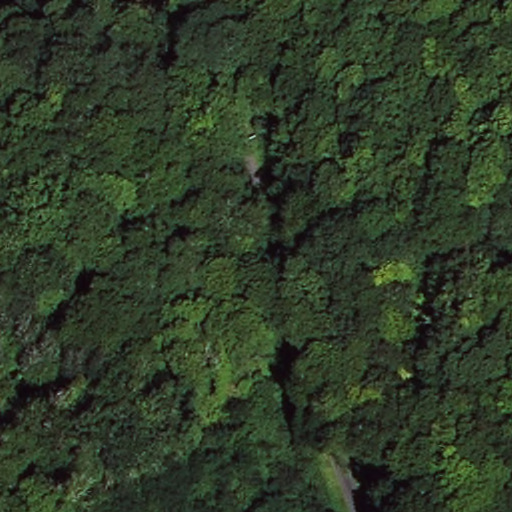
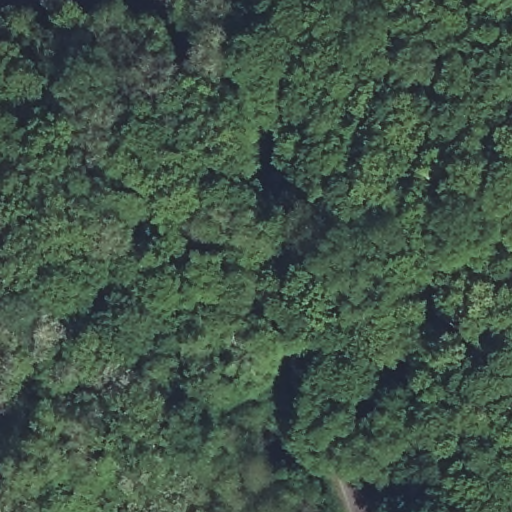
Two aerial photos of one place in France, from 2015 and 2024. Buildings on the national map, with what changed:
unchanged [(486,336),(469,334),(470,323),(487,325),(486,336)]

